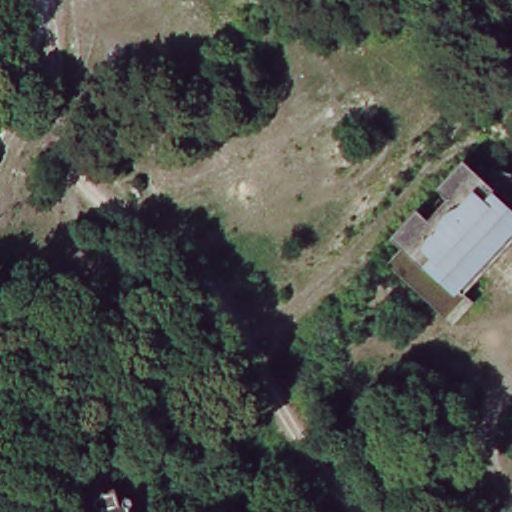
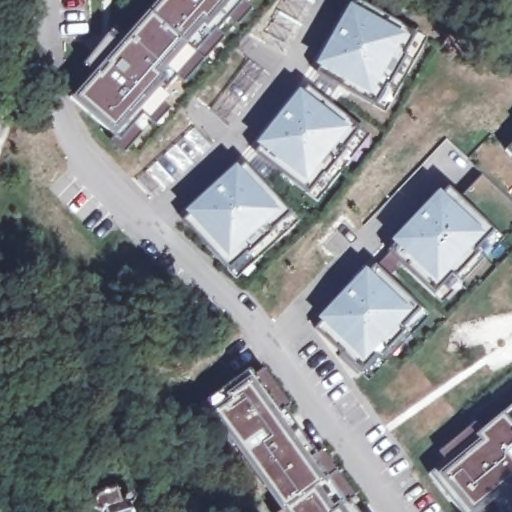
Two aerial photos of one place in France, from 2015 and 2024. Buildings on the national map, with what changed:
new [(157,0),(236,0),(170,72),(172,75),(115,138),(71,97),(157,0)]
new [(242,1),(241,0),(243,0),(242,1)]
new [(403,36),(370,96),(314,65),(348,6),(403,36)]
new [(230,125),(211,110),(250,60),(269,75),(230,125)]
new [(348,130),(305,184),(255,144),(298,90),(348,130)]
new [(512,157),(505,151),(512,144),(512,157)]
demolished [(387,236),(460,159),(512,213),(512,236),(453,295),(398,245),(387,236)]
demolished [(512,213),(460,159),(512,174),(512,213)]
new [(236,165),(279,212),(227,258),(185,211),(236,165)]
new [(385,275),(418,308),(400,327),(402,330),(380,354),(377,351),(358,370),(315,329),(320,322),(316,318),(363,268),(368,272),(375,266),(388,250),(394,244),(391,240),(438,191),(442,195),(448,189),(491,231),(473,250),(476,253),(453,276),(450,273),(432,293),(399,262),(385,275)]
demolished [(460,300),(445,321),(378,269),(398,245),(453,295),(460,300)]
new [(208,413),(203,404),(249,370),(280,413),(283,411),(315,456),(311,460),(325,480),(342,505),(347,503),(354,512),(277,512),(278,511),(208,413)]
new [(512,502),(500,511),(491,501),(477,512),(460,512),(429,475),(475,435),(501,415),(512,406),(512,502)]
unchanged [(96,505),(93,497),(97,491),(116,485),(120,500),(124,498),(123,497),(123,496),(123,495),(124,495),(125,494),(125,493),(126,493),(127,492),(128,492),(129,493),(130,493),(130,494),(131,495),(131,496),(131,497),(131,498),(130,499),(130,500),(134,512),(105,512),(105,509),(96,505)]

